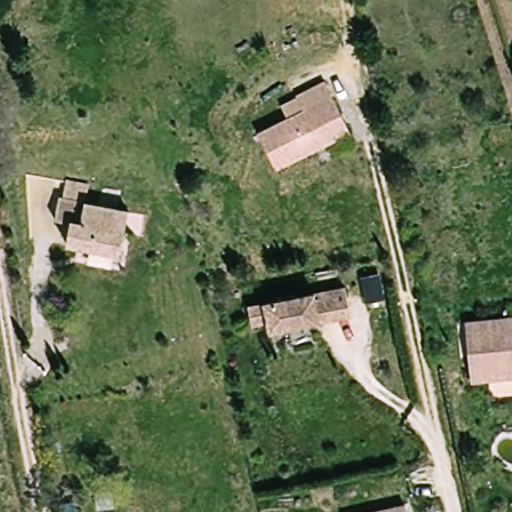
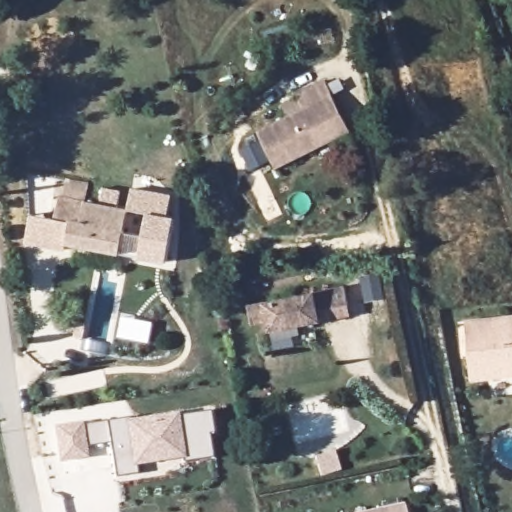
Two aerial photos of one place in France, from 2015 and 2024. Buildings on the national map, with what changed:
unchanged [(279,173),(262,137),(308,115),(301,100),(331,86),(338,101),(355,137),(279,173)]
unchanged [(67,200),(71,183),(91,186),(89,203),(67,200)]
new [(171,194),(167,216),(175,217),(166,262),(140,258),(147,214),(147,212),(130,210),(131,187),(171,194)]
unchanged [(128,211),(120,256),(65,246),(68,229),(52,226),(57,198),(128,211)]
new [(52,226),(68,229),(65,246),(65,250),(25,243),(30,214),(53,220),(52,226)]
unchanged [(381,272),(387,299),(367,303),(361,277),(381,272)]
unchanged [(318,315),(268,326),(266,316),(250,319),(246,305),(344,284),(347,299),(350,308),(318,315)]
unchanged [(505,334),(512,333),(512,369),(475,375),(466,329),(503,322),(505,334)]
new [(116,476),(111,441),(88,446),(90,456),(60,460),(54,426),(85,421),(85,423),(107,420),(180,410),(180,415),(211,410),(215,433),(208,434),(213,457),(182,462),(181,458),(136,465),(137,473),(116,476)]
unchanged [(407,512),(371,512),(405,505),(407,512)]

